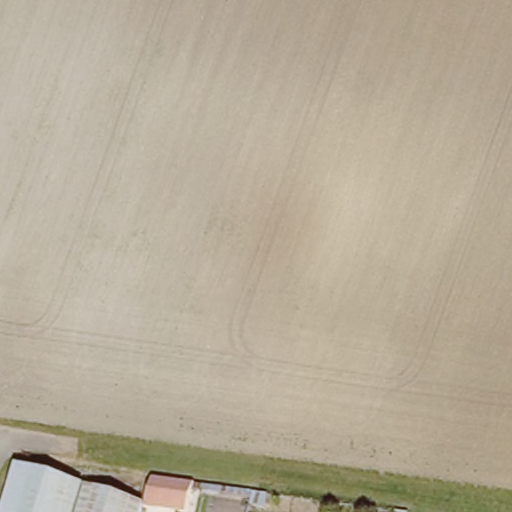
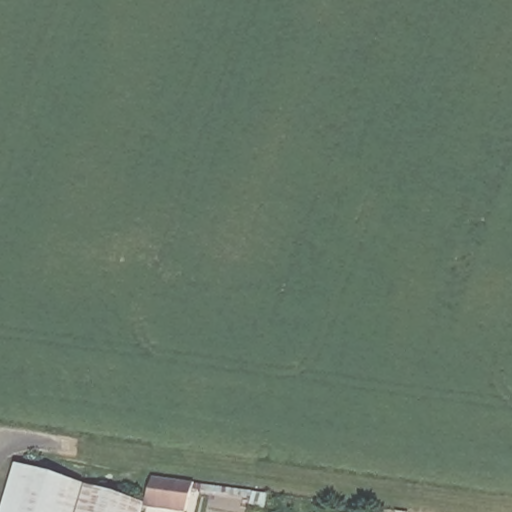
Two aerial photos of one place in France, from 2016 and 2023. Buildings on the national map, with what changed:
unchanged [(1,512),(12,472),(80,491),(74,512),(1,512)]
unchanged [(157,512),(142,508),(150,482),(192,487),(184,512),(157,512)]
unchanged [(141,512),(74,512),(80,491),(142,508),(141,512)]

